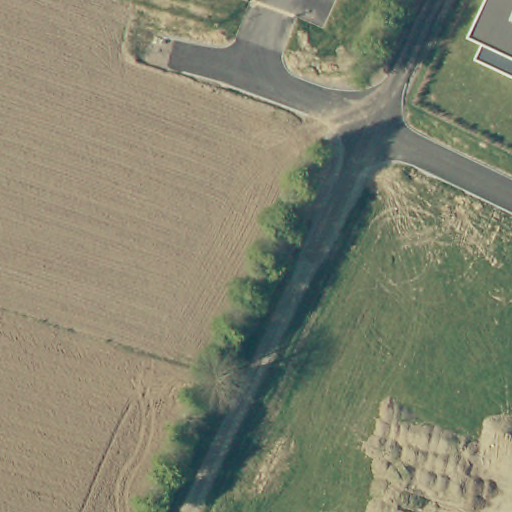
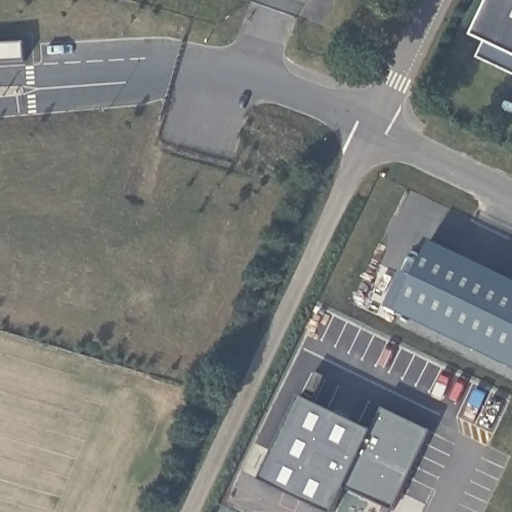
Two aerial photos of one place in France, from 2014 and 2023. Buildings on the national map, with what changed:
unchanged [(488,42),(472,35),(489,0),(512,0),(512,73),(480,58),(488,42)]
new [(512,277),(512,366),(396,310),(431,238),(512,277)]
new [(429,432),(393,510),(345,486),(332,512),(328,512),(260,479),(300,395),(372,429),(382,409),(429,432)]

